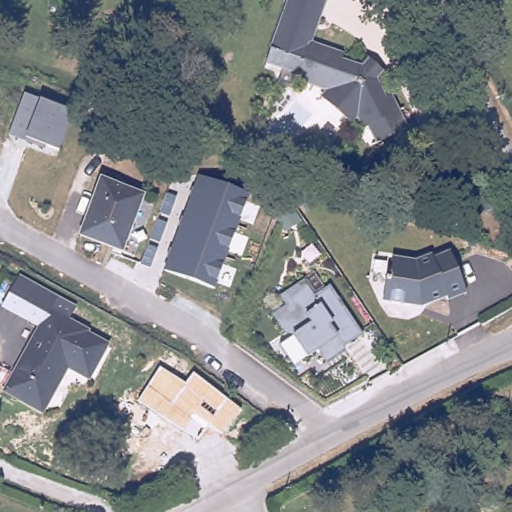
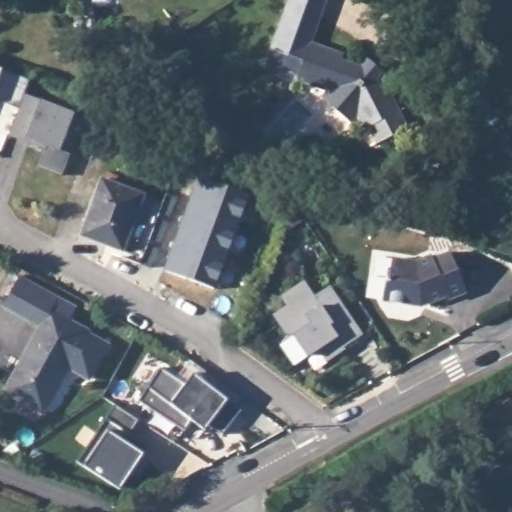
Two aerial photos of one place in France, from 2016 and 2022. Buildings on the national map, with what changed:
unchanged [(392,79),(384,88),(387,106),(394,105),(412,140),(381,155),(374,138),(369,140),(363,127),(356,131),(324,102),(329,96),(299,87),(299,82),(289,78),(285,87),(270,82),(277,67),(273,65),(260,60),(285,0),(331,0),(313,45),(345,58),(341,67),(357,74),(368,73),(376,64),(392,79)]
new [(24,95),(19,107),(0,101),(0,72),(29,80),(24,95)]
unchanged [(39,100),(72,113),(60,151),(46,147),(44,150),(9,135),(24,95),(39,100)]
unchanged [(197,177),(248,194),(214,288),(164,271),(197,177)]
unchanged [(123,247),(83,235),(101,178),(141,192),(123,247)]
unchanged [(123,247),(141,192),(163,200),(140,263),(120,257),(123,247)]
unchanged [(449,301),(448,298),(422,310),(382,303),(389,257),(416,262),(432,255),(433,258),(449,252),(467,293),(449,301)]
unchanged [(78,307),(71,319),(48,307),(36,328),(1,310),(19,276),(78,307)]
unchanged [(327,362),(319,352),(308,360),(304,355),(293,362),(284,349),(289,346),(270,317),(286,307),(279,296),(305,280),(314,293),(329,285),(363,336),(327,362)]
unchanged [(71,319),(87,327),(87,333),(107,345),(85,383),(63,371),(38,413),(0,392),(36,328),(48,307),(71,319)]
unchanged [(159,369),(185,384),(193,375),(227,402),(239,411),(222,433),(208,426),(205,428),(190,421),(185,430),(139,400),(159,369)]
new [(104,436),(99,431),(117,406),(141,420),(131,435),(149,446),(144,455),(120,490),(84,467),(104,436)]

